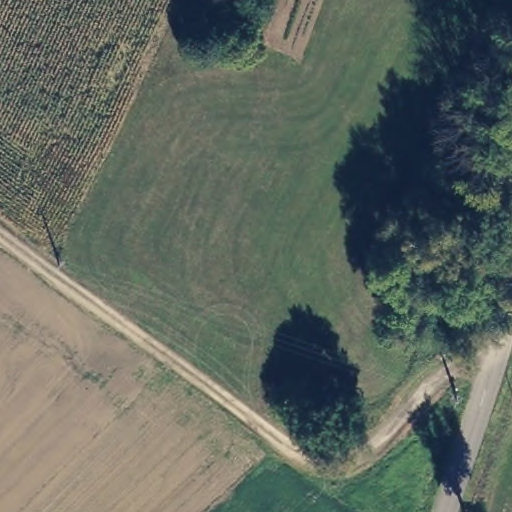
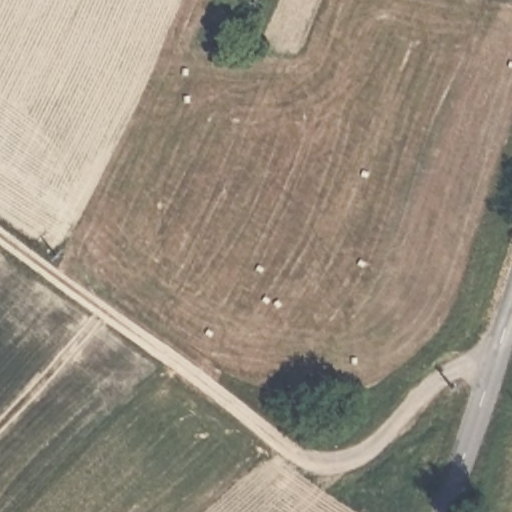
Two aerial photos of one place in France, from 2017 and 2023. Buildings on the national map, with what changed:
[]

